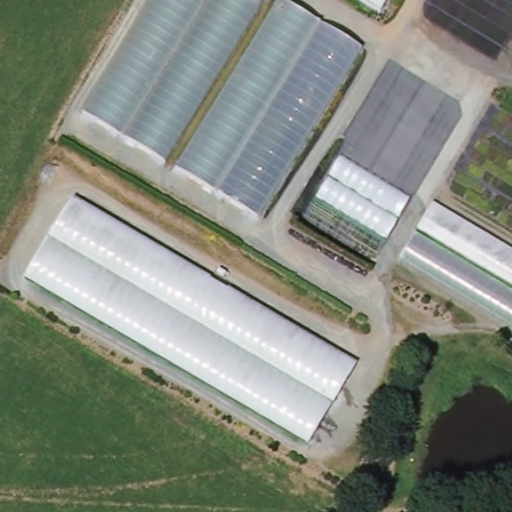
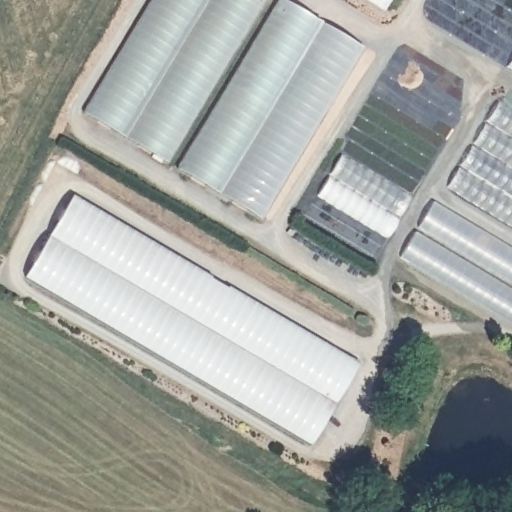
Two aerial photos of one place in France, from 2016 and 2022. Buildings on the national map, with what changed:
unchanged [(154,0),(264,0),(167,166),(101,128),(85,119),(146,15),(154,0)]
unchanged [(363,44),(261,219),(176,171),(278,0),(286,0),(363,44)]
unchanged [(390,13),(366,0),(397,0),(390,13)]
new [(500,100),(512,107),(512,226),(447,187),(500,100)]
unchanged [(386,239),(317,198),(341,156),(410,198),(386,239)]
unchanged [(74,194),(358,364),(312,447),(26,279),(74,194)]
unchanged [(512,248),(512,327),(398,259),(433,201),(512,248)]

